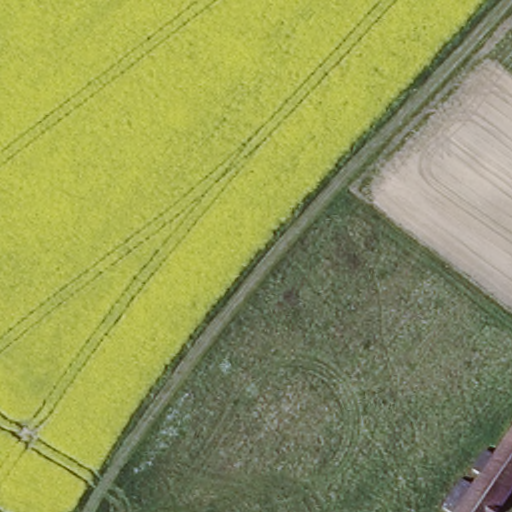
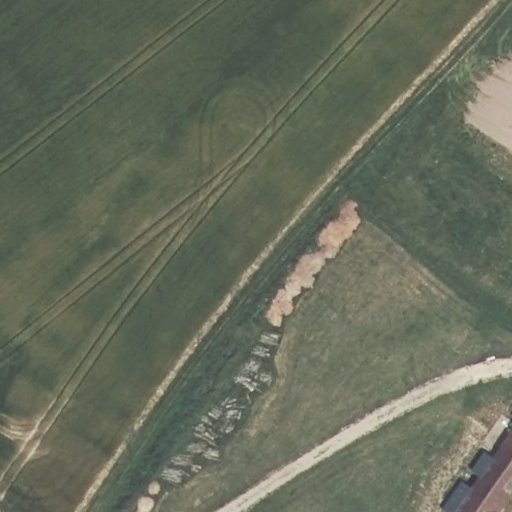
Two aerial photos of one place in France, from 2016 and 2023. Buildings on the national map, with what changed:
unchanged [(467,495),(482,478),(472,470),(483,456),(494,464),(512,440),(512,502),(505,512),(441,512),(459,489),(467,495)]

